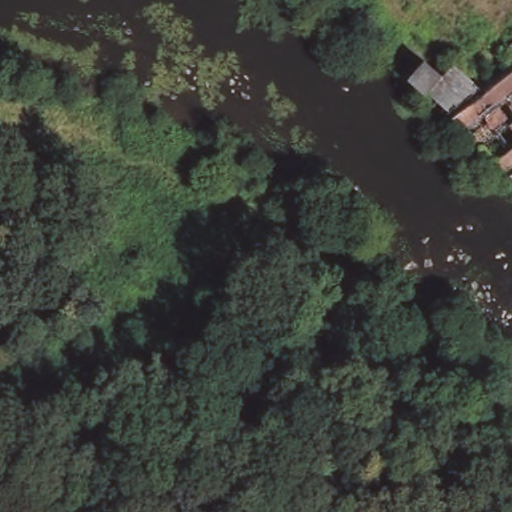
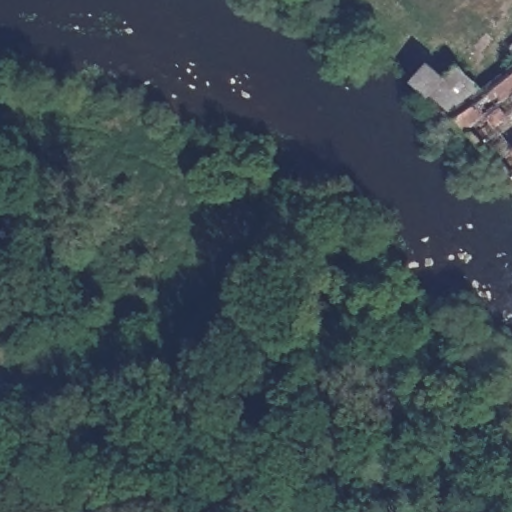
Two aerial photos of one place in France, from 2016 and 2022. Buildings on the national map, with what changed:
unchanged [(512,50),(512,53),(511,51),(512,50)]
unchanged [(431,96),(419,87),(417,85),(431,69),(446,82),(455,72),(457,69),(483,93),(512,71),(512,178),(506,171),(431,96)]

